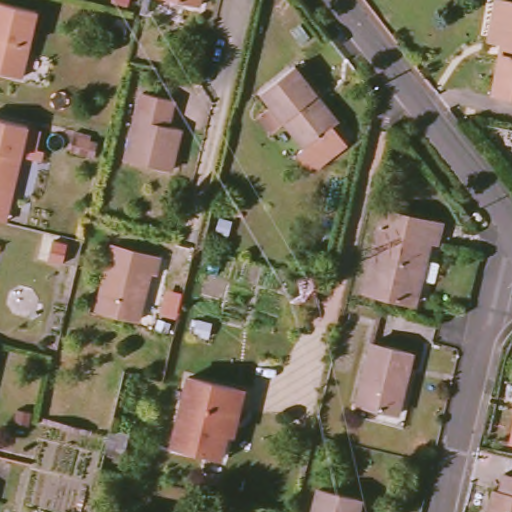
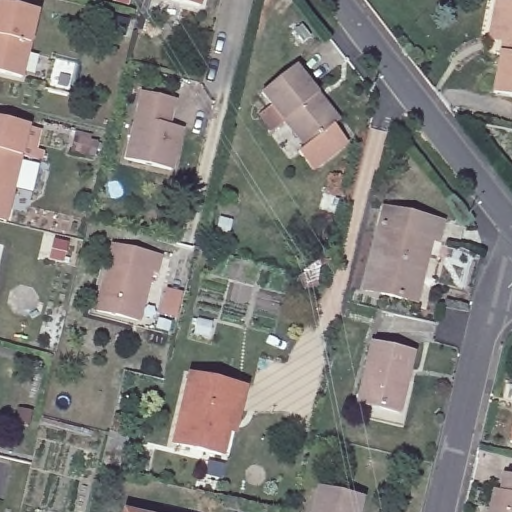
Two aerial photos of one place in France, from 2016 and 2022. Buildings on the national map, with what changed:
unchanged [(117,5),(101,0),(118,0),(117,5)]
unchanged [(199,9),(165,0),(201,0),(199,9)]
unchanged [(44,13),(29,77),(0,70),(0,2),(44,13)]
unchanged [(502,42),(510,3),(512,3),(512,44),(502,42)]
unchanged [(505,57),(511,57),(512,44),(512,96),(499,94),(505,57)]
unchanged [(318,165),(305,149),(310,145),(266,89),(298,63),(321,90),(344,117),(337,124),(350,140),(318,165)]
unchanged [(178,102),(171,129),(183,132),(174,172),(128,161),(145,94),(178,102)]
unchanged [(33,129),(18,193),(0,189),(0,121),(33,129)]
unchanged [(79,148),(75,162),(61,158),(65,144),(79,148)]
unchanged [(444,223),(439,240),(436,239),(419,306),(368,293),(389,209),(444,223)]
unchanged [(156,255),(141,319),(106,311),(122,247),(156,255)]
unchanged [(416,355),(401,415),(360,405),(375,345),(416,355)]
unchanged [(230,460),(224,458),(175,445),(192,375),(234,386),(248,390),(230,460)]
unchanged [(505,491),(509,474),(512,474),(512,512),(495,512),(501,490),(505,491)]
unchanged [(362,512),(318,512),(323,492),(349,498),(365,502),(362,512)]

